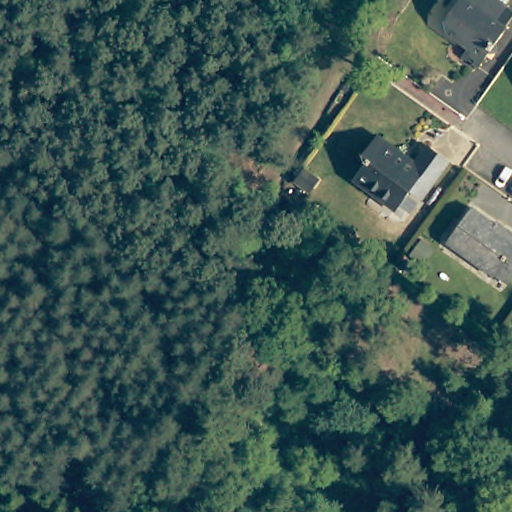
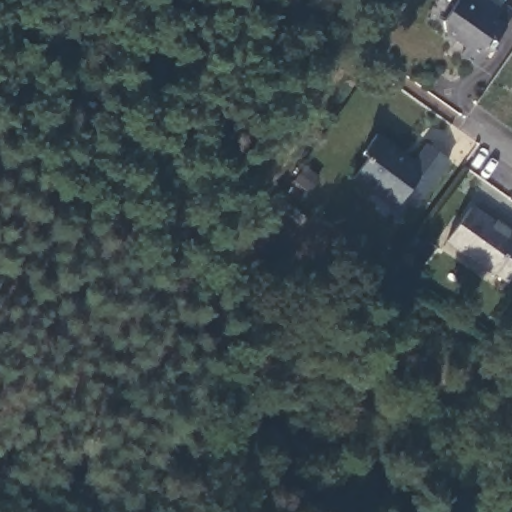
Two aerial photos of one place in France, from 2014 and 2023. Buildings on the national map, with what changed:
unchanged [(463,0),(495,0),(512,11),(512,22),(507,29),(508,30),(497,47),(499,56),(490,58),(481,72),(466,62),(472,53),(449,39),(446,27),(463,0)]
unchanged [(382,202),(368,193),(347,178),(361,155),(354,151),(367,132),(373,136),(375,135),(395,149),(407,157),(417,141),(439,155),(414,192),(405,186),(402,192),(391,208),(382,202)]
unchanged [(469,207),(501,228),(502,225),(512,232),(512,273),(507,280),(494,271),(492,275),(444,243),(469,207)]
unchanged [(435,259),(425,274),(413,266),(423,251),(435,259)]

